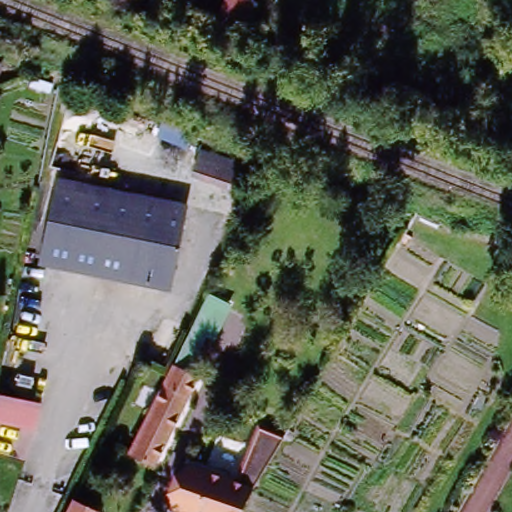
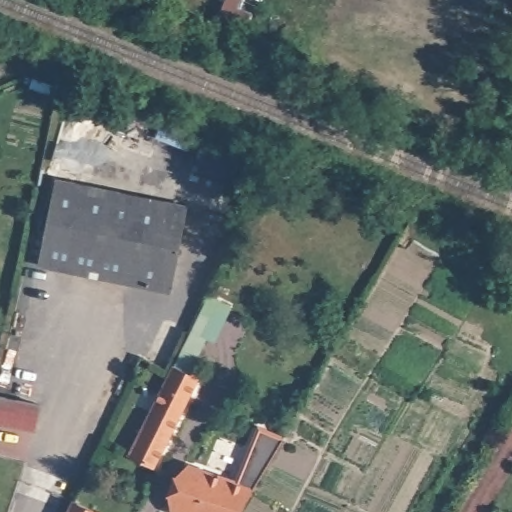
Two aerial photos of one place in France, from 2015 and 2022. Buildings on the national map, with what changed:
unchanged [(0,54),(3,55),(0,64),(0,54)]
unchanged [(200,144),(258,164),(247,198),(189,178),(200,144)]
unchanged [(170,290),(42,263),(60,181),(188,207),(170,290)]
unchanged [(202,304),(222,318),(197,368),(177,357),(202,304)]
unchanged [(196,370),(181,404),(162,448),(159,455),(136,445),(150,415),(175,360),(177,357),(197,368),(196,370)]
unchanged [(33,425),(0,419),(0,393),(38,400),(33,425)]
unchanged [(256,429),(280,438),(238,512),(176,512),(171,510),(187,466),(236,484),(256,429)]
unchanged [(95,509),(94,512),(71,512),(76,501),(95,509)]

